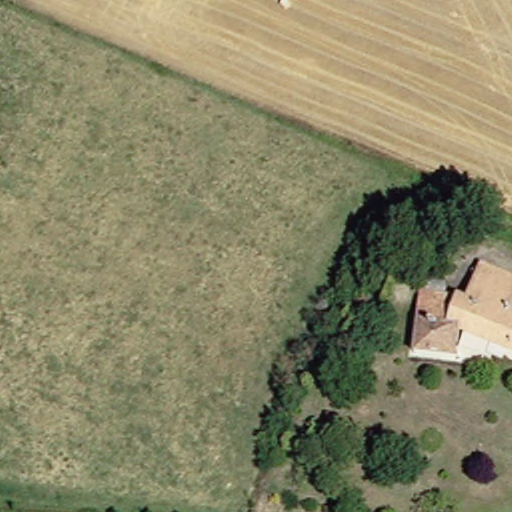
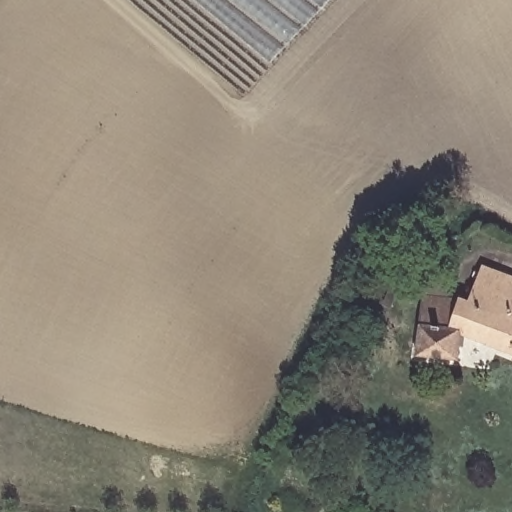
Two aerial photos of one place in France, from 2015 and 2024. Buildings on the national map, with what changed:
new [(270,64),(196,0),(331,0),(270,64)]
unchanged [(469,302),(483,266),(512,276),(512,348),(466,327),(464,357),(419,348),(423,287),(469,302)]

